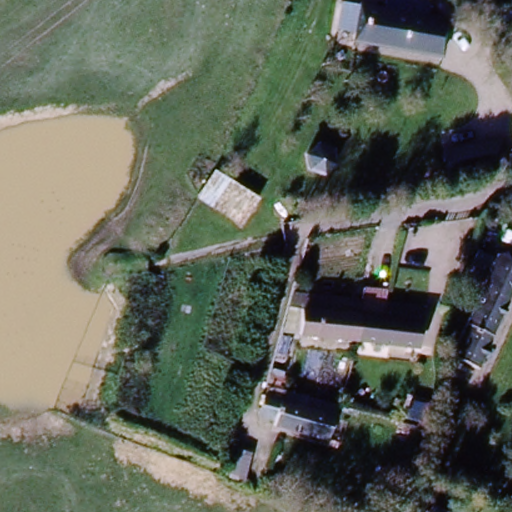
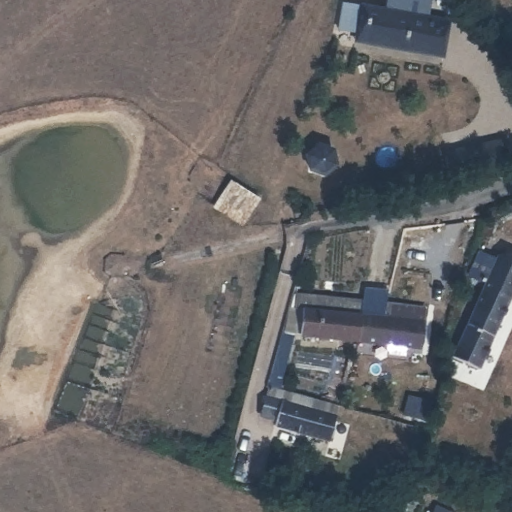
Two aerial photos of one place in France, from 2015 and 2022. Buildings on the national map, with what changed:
unchanged [(336,29),(341,3),(360,6),(361,5),(384,9),(386,1),(386,0),(430,0),(427,17),(448,21),(444,40),(441,57),(354,41),(356,33),(336,29)]
unchanged [(502,141),(506,163),(448,176),(443,153),(502,141)]
unchanged [(259,200),(241,227),(197,198),(215,171),(259,200)]
unchanged [(512,309),(484,372),(457,361),(489,288),(472,281),(483,256),(512,269),(512,309)]
unchanged [(363,302),(365,289),(387,293),(385,302),(383,318),(362,316),(359,343),(298,337),(302,310),(291,309),(294,294),(363,302)]
unchanged [(423,307),(417,351),(359,343),(362,316),(383,318),(385,302),(423,307)]
unchanged [(274,428),(258,423),(267,391),(272,375),(282,378),(277,394),(340,411),(329,449),(273,432),(274,428)]
unchanged [(246,460),(240,482),(222,477),(228,455),(246,460)]

